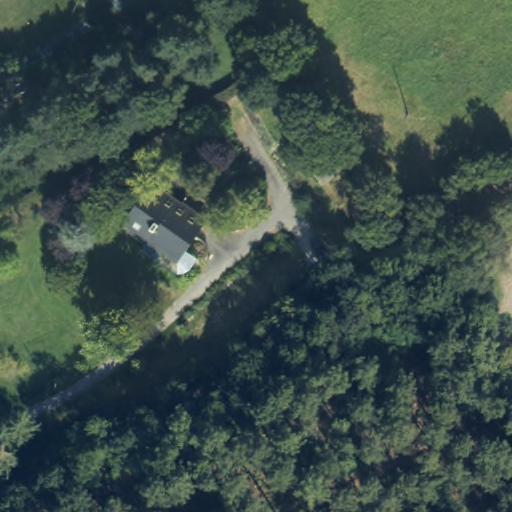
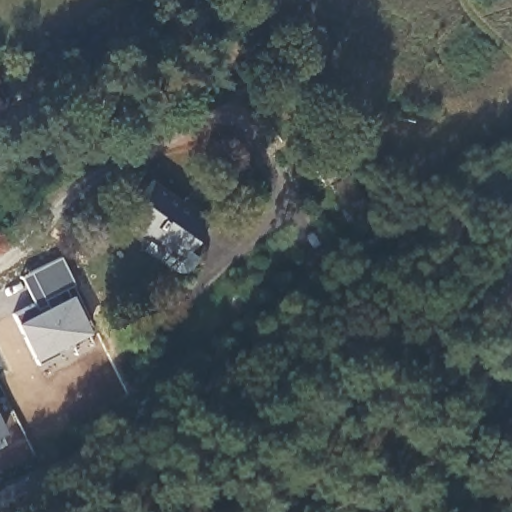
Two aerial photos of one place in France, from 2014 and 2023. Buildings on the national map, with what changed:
unchanged [(327,186),(299,143),(321,130),(348,173),(327,186)]
unchanged [(183,247),(196,259),(177,279),(138,254),(149,241),(123,220),(149,185),(200,226),(183,247)]
new [(37,310),(23,283),(33,278),(65,262),(79,290),(69,295),(90,338),(72,347),(71,343),(58,350),(62,358),(40,369),(16,319),(36,310),(37,310)]
new [(0,442),(0,422),(8,438),(0,442)]

